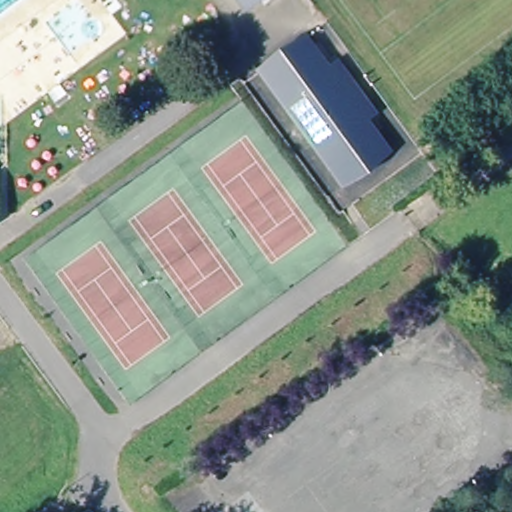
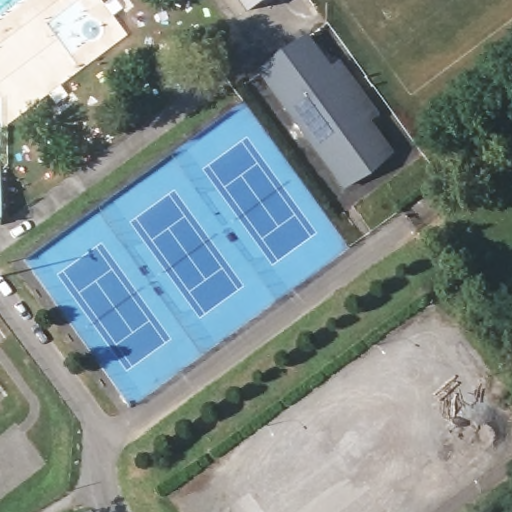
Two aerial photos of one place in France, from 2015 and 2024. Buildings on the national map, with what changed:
unchanged [(251,13),(242,0),(269,0),(251,13)]
unchanged [(345,187),(259,74),(280,57),(304,40),(328,72),(337,66),(373,115),(365,121),(390,154),(345,187)]

